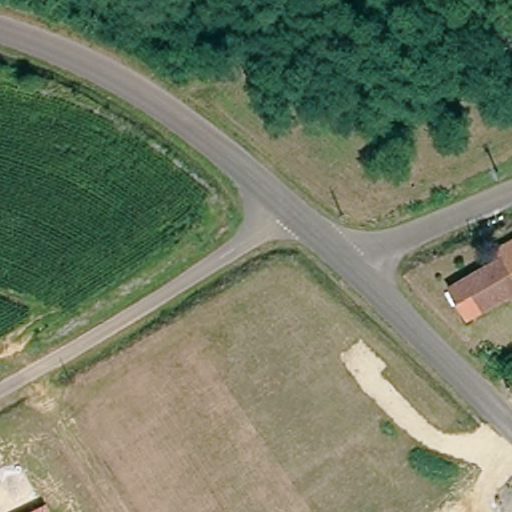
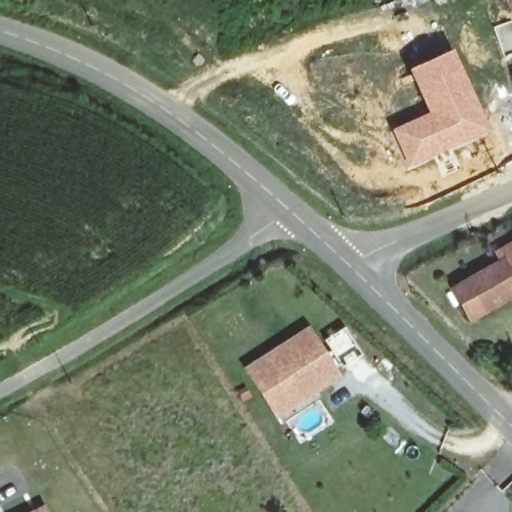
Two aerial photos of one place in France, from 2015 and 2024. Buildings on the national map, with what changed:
new [(512,19),(512,54),(505,57),(493,26),(512,19)]
new [(427,111),(408,68),(454,47),(494,131),(408,170),(390,129),(427,111)]
unchanged [(468,321),(452,290),(505,263),(502,256),(512,251),(512,300),(468,321)]
new [(245,367),(308,325),(338,373),(275,415),(245,367)]
unchanged [(48,512),(29,512),(45,504),(48,512)]

